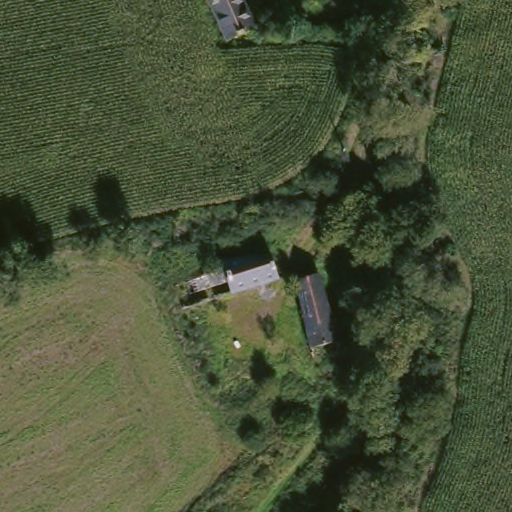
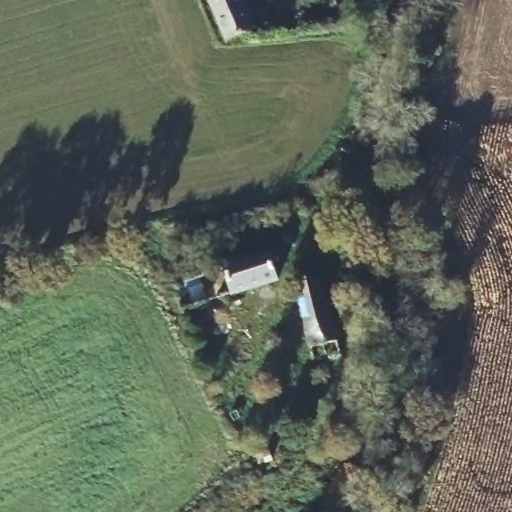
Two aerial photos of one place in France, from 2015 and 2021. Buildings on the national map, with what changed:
unchanged [(223,45),(202,0),(236,0),(252,32),(223,45)]
unchanged [(274,287),(224,299),(217,272),(265,259),(274,287)]
unchanged [(318,275),(337,354),(312,360),(294,283),(318,275)]

